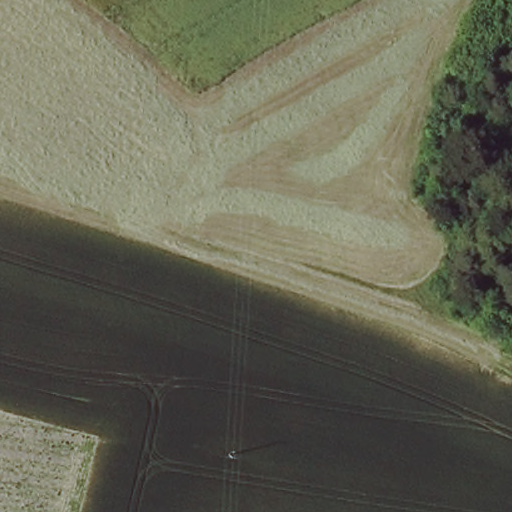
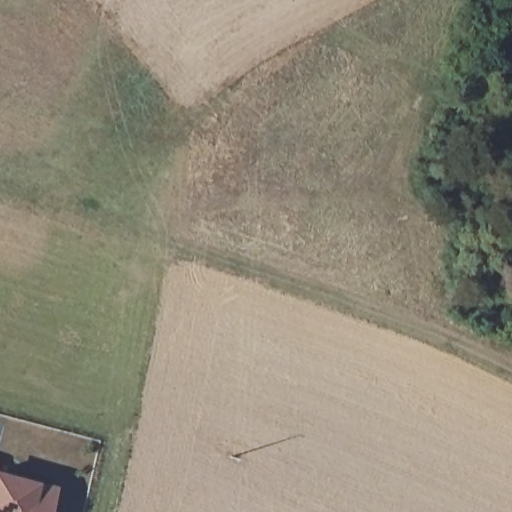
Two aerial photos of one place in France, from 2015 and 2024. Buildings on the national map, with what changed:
new [(30,470),(28,479),(39,481),(56,486),(49,512),(0,512),(0,462),(30,470)]

